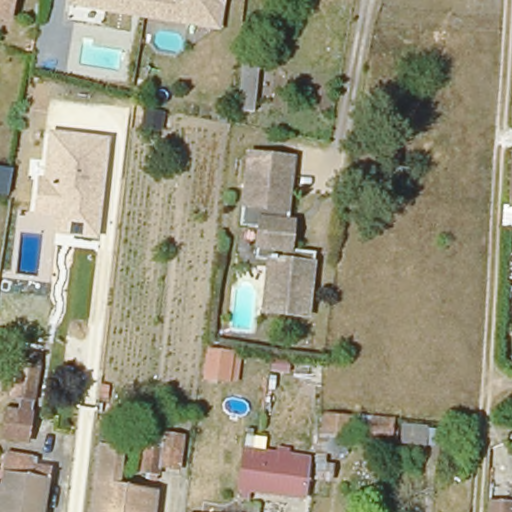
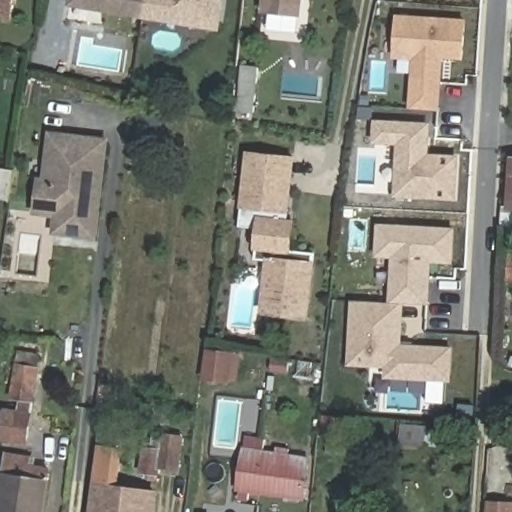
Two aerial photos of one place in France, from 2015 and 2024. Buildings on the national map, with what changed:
unchanged [(14,20),(0,17),(0,0),(17,0),(14,20)]
unchanged [(184,20),(182,20),(145,15),(144,15),(105,9),(71,4),(72,0),(222,0),(218,25),(184,20)]
new [(302,17),(263,13),(264,0),(304,0),(302,17)]
new [(444,62),(440,111),(408,109),(410,73),(399,72),(399,58),(393,57),(396,15),(467,20),(464,64),(444,62)]
new [(244,67),(259,69),(254,114),(240,112),(244,67)]
new [(396,146),(377,145),(378,120),(429,122),(429,154),(459,155),(457,201),(395,197),(396,146)]
unchanged [(35,215),(38,177),(44,178),(50,131),(110,137),(98,239),(52,235),(54,217),(35,215)]
unchanged [(252,160),(284,163),(280,194),(248,191),(252,160)]
new [(9,199),(0,198),(0,171),(14,174),(9,199)]
unchanged [(511,205),(512,181),(512,205),(511,205)]
unchanged [(280,194),(289,195),(285,227),(296,228),(293,256),(314,258),(307,321),(267,316),(272,266),(255,264),(259,233),(239,231),(244,190),(248,191),(280,194)]
new [(391,259),(375,258),(376,224),(455,228),(453,264),(431,263),(429,305),(404,304),(402,345),(454,349),(453,383),(384,378),(384,368),(348,366),(351,300),(389,302),(391,259)]
unchanged [(233,351),(229,379),(204,376),(208,348),(233,351)]
unchanged [(290,359),(289,372),(274,370),(276,357),(290,359)]
unchanged [(33,409),(14,407),(18,376),(37,379),(33,409)]
unchanged [(8,423),(19,425),(21,413),(33,414),(27,452),(4,449),(8,423)]
unchanged [(321,416),(445,429),(442,452),(372,445),(373,440),(351,438),(347,463),(334,462),(331,485),(317,483),(314,503),(308,502),(314,462),(321,416)]
unchanged [(159,474),(156,474),(156,479),(149,478),(149,472),(141,471),(144,448),(161,449),(163,434),(168,435),(183,437),(179,467),(164,465),(159,465),(159,474)]
unchanged [(244,502),(245,491),(252,452),(254,440),(274,443),(272,455),(281,457),(282,451),(295,453),(294,459),(314,462),(308,502),(254,493),(253,503),(244,502)]
unchanged [(153,497),(151,512),(92,512),(99,454),(121,456),(116,493),(153,497)]
unchanged [(15,470),(38,474),(33,512),(0,512),(0,459),(17,462),(15,470)]
unchanged [(512,503),(512,512),(488,512),(489,502),(512,503)]

